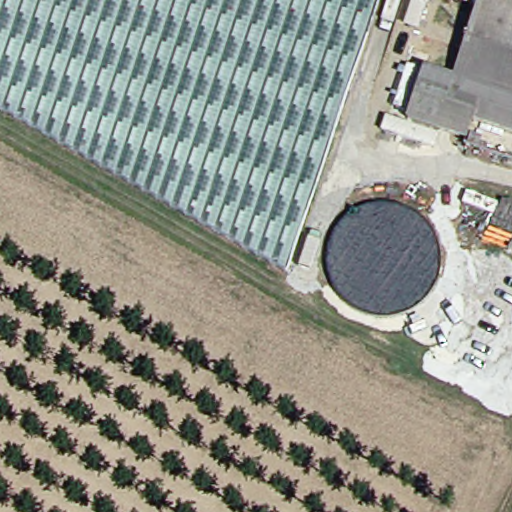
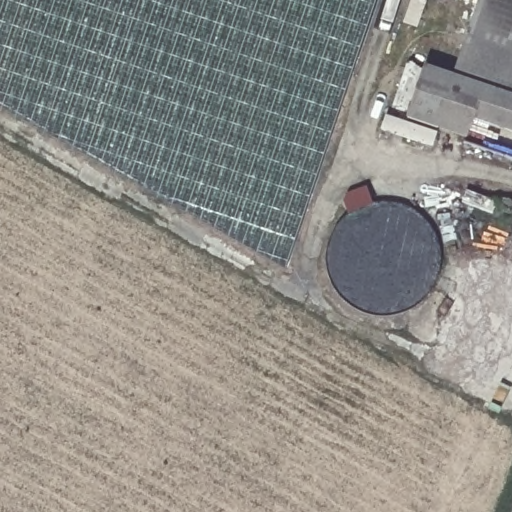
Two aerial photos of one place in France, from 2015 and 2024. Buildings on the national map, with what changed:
unchanged [(0,110),(0,0),(365,0),(267,261),(0,110)]
unchanged [(461,135),(400,117),(414,61),(449,74),(471,0),(512,0),(512,132),(467,117),(461,135)]

